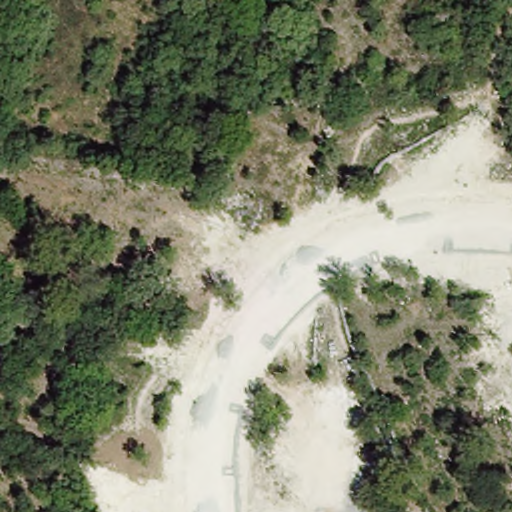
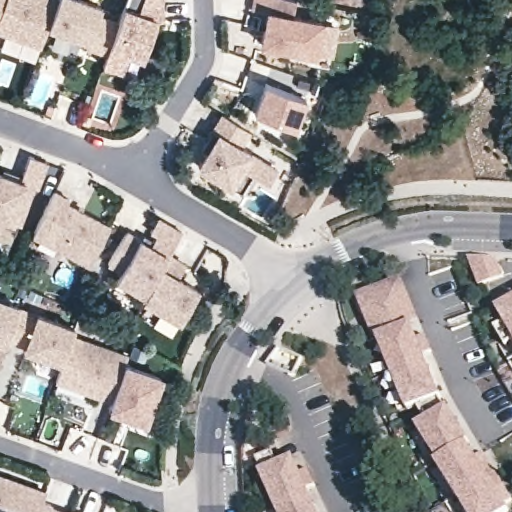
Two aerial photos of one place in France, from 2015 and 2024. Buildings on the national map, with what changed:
new [(48,26),(42,44),(0,29),(0,0),(57,0),(48,26)]
new [(57,0),(83,0),(101,6),(98,15),(118,22),(107,52),(87,45),(88,40),(48,26),(57,0)]
new [(107,52),(118,22),(126,0),(162,0),(163,18),(157,19),(143,56),(128,51),(122,71),(102,65),(107,52)]
new [(255,0),(294,0),(291,15),(320,21),(313,53),(261,42),(267,11),(253,8),(255,0)]
new [(267,82),(306,99),(293,128),(254,111),(267,82)]
new [(227,182),(194,162),(203,148),(197,145),(209,127),(218,111),(246,129),(237,144),(274,167),(265,181),(248,171),(237,189),(227,182)]
new [(1,172),(2,168),(22,175),(29,154),(47,161),(38,186),(34,184),(22,218),(6,212),(2,224),(0,223),(0,172),(1,172)]
new [(53,189),(68,197),(66,202),(109,225),(89,263),(32,233),(53,189)]
new [(126,230),(150,244),(156,233),(150,230),(157,217),(181,231),(168,253),(144,294),(116,277),(121,269),(108,262),(126,230)]
new [(144,294),(168,253),(184,263),(176,277),(198,289),(181,318),(143,296),(144,294)]
new [(512,285),(495,292),(482,258),(512,260),(512,285)]
new [(397,410),(369,339),(373,337),(356,297),(399,280),(406,297),(415,321),(410,323),(415,337),(421,335),(427,349),(421,351),(423,359),(437,394),(436,395),(445,408),(425,420),(414,403),(406,406),(397,410)]
new [(512,326),(506,329),(494,309),(512,298),(512,326)]
new [(17,308),(17,310),(7,340),(0,358),(0,302),(17,308)]
new [(494,309),(506,329),(512,339),(512,353),(488,312),(494,309)]
new [(17,310),(73,330),(70,337),(62,362),(23,348),(24,346),(7,340),(17,310)]
new [(512,339),(506,329),(512,326),(512,339)]
new [(62,362),(70,337),(126,357),(123,366),(111,399),(55,379),(62,362)]
new [(111,399),(123,366),(159,379),(144,422),(107,409),(111,399)]
new [(502,501),(506,507),(499,512),(462,512),(411,429),(416,426),(445,408),(462,435),(469,448),(475,445),(483,457),(477,461),(482,468),(495,488),(500,485),(508,498),(502,501)]
new [(262,467),(257,458),(274,450),(278,460),(292,454),(302,474),(308,471),(314,485),(308,488),(310,493),(275,508),(257,469),(262,467)]
new [(257,458),(262,467),(257,469),(275,508),(310,493),(319,512),(269,512),(246,462),(257,458)]
new [(45,491),(42,500),(51,503),(50,505),(68,512),(0,512),(0,474),(37,487),(45,491)]
new [(75,512),(70,512),(70,510),(75,512)]

